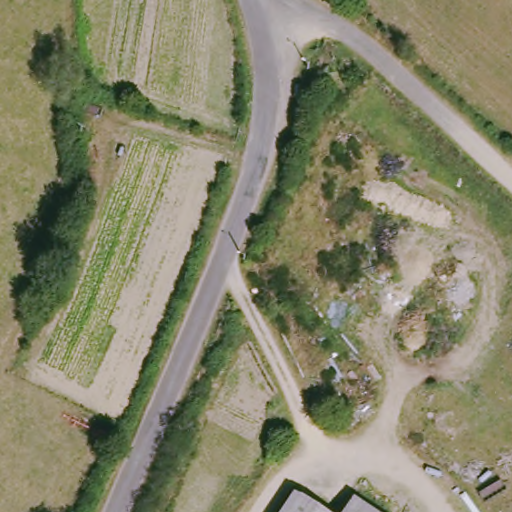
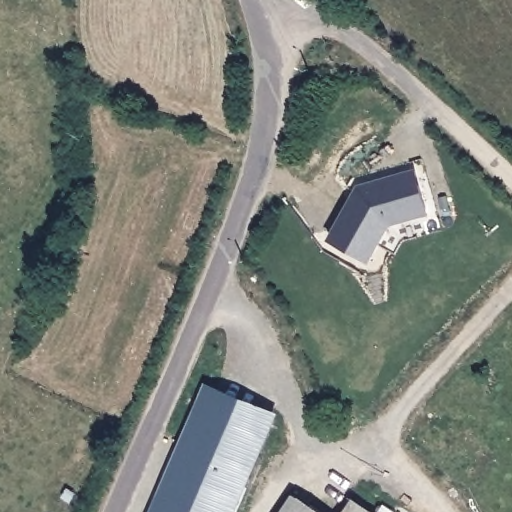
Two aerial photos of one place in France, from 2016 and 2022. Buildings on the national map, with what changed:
new [(330,239),(360,185),(418,169),(430,214),(392,225),(370,262),(330,239)]
new [(208,388),(267,413),(257,437),(198,412),(208,388)]
new [(198,412),(257,437),(225,512),(156,512),(198,412)]
unchanged [(300,495),(326,512),(290,512),(300,495)]
unchanged [(365,502),(380,512),(358,512),(365,502)]

